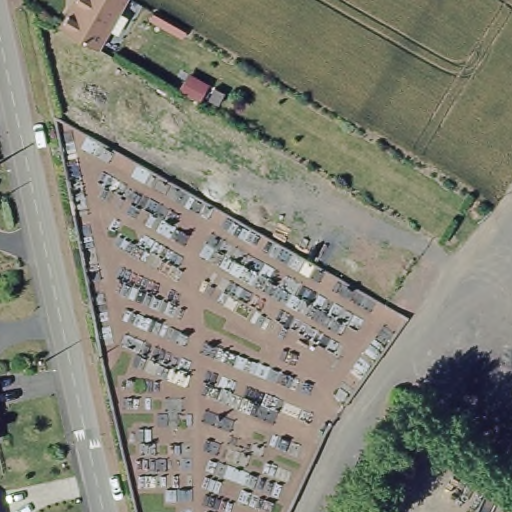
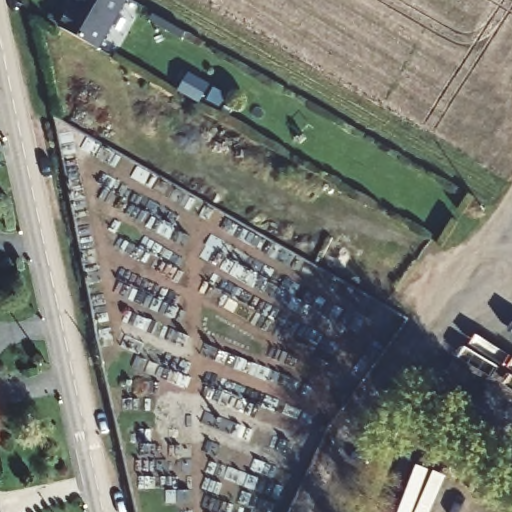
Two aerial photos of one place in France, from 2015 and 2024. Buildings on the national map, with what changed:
unchanged [(60,24),(75,0),(130,0),(100,48),(60,24)]
unchanged [(0,512),(0,497),(3,512),(0,512)]

